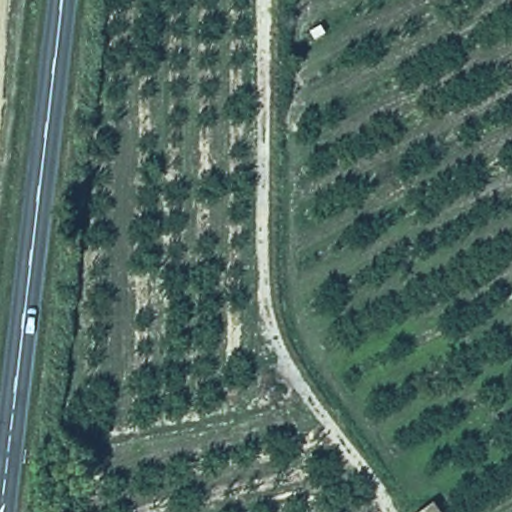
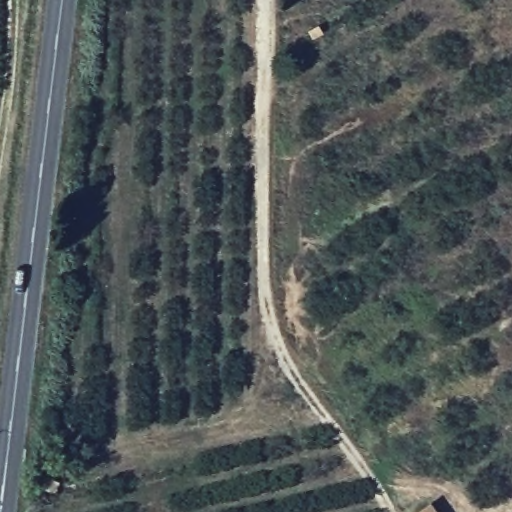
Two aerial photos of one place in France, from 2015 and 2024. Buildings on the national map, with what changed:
unchanged [(436,508),(438,512),(427,512),(436,508)]

